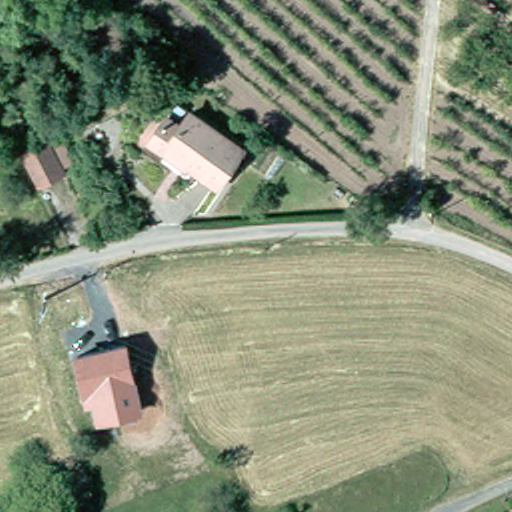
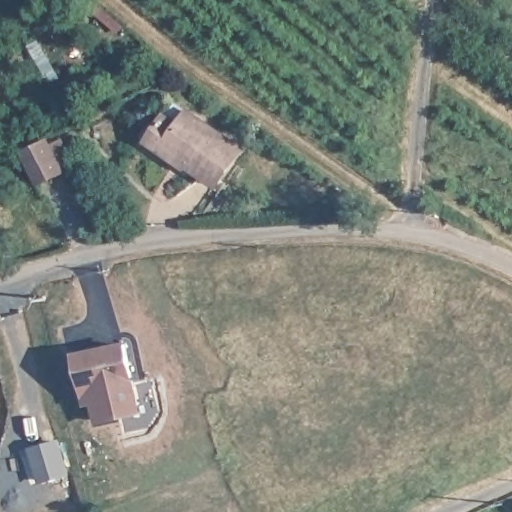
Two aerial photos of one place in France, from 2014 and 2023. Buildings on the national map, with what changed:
unchanged [(188,150),(167,137),(163,144),(145,134),(161,107),(176,116),(184,102),(238,135),(213,175),(183,157),(188,150)]
unchanged [(61,165),(34,176),(23,155),(21,149),(49,137),(61,165)]
unchanged [(131,342),(144,412),(98,421),(95,404),(86,405),(76,354),(131,342)]
new [(57,440),(65,471),(38,478),(30,447),(57,440)]

